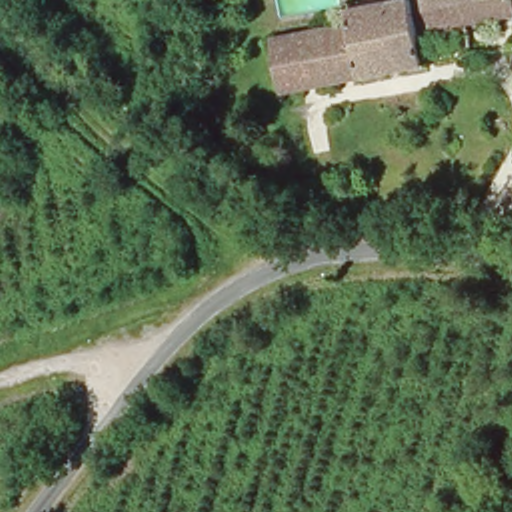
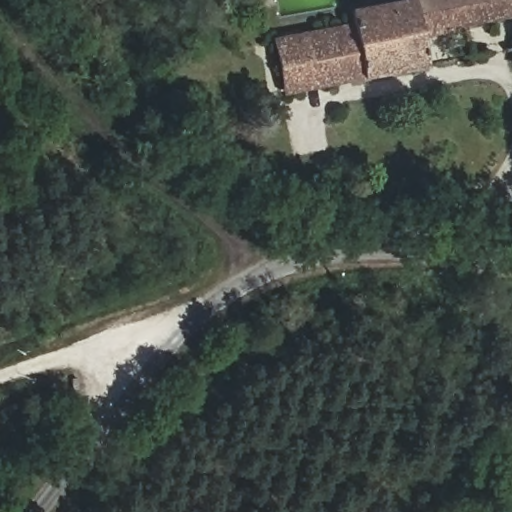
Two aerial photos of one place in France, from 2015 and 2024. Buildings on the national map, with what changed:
unchanged [(289,94),(281,40),(357,26),(353,12),(407,0),(417,0),(420,15),(423,39),(429,67),(289,94)]
unchanged [(512,0),(512,22),(471,30),(467,5),(492,0),(512,0)]
unchanged [(420,15),(467,5),(471,30),(423,39),(420,15)]

